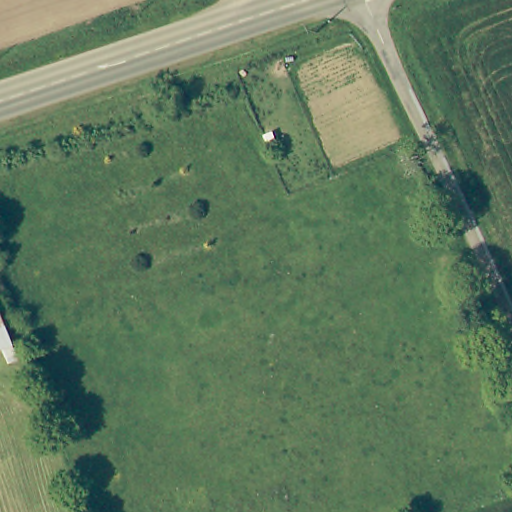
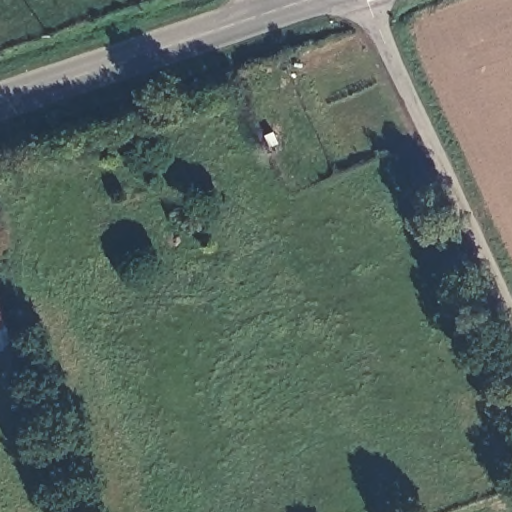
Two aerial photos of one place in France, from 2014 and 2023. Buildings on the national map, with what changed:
unchanged [(17,352),(7,356),(3,345),(0,346),(0,299),(17,352)]

